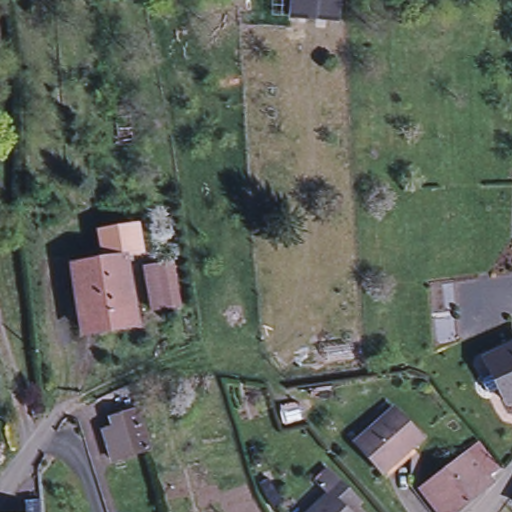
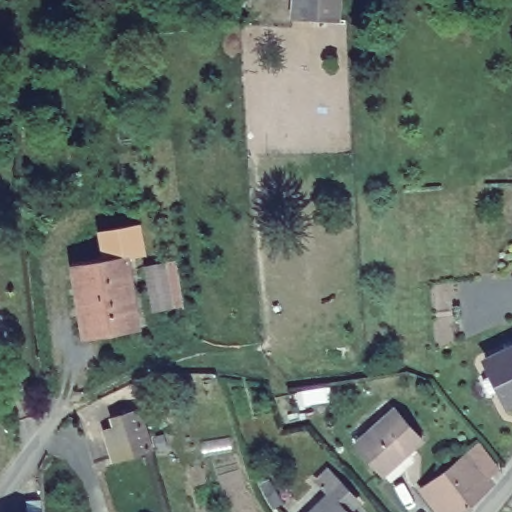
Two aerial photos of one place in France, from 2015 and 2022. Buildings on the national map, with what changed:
unchanged [(340,20),(290,17),(291,0),(341,0),(340,20)]
unchanged [(136,223),(142,253),(124,256),(104,259),(99,229),(136,223)]
unchanged [(135,323),(86,331),(74,265),(104,259),(124,256),(135,323)]
unchanged [(169,260),(175,310),(150,312),(144,262),(169,260)]
unchanged [(480,362),(512,347),(512,404),(503,408),(480,362)]
unchanged [(423,439),(384,474),(355,442),(394,407),(423,439)]
unchanged [(124,424),(121,415),(140,409),(152,447),(113,459),(104,430),(124,424)]
unchanged [(455,512),(441,512),(422,487),(447,469),(444,464),(450,460),(453,464),(468,453),(491,482),(455,512)]
unchanged [(326,489),(317,480),(328,469),(337,479),(358,500),(347,511),(348,512),(310,512),(330,493),(326,489)]
unchanged [(40,503),(40,512),(26,512),(26,504),(40,503)]

